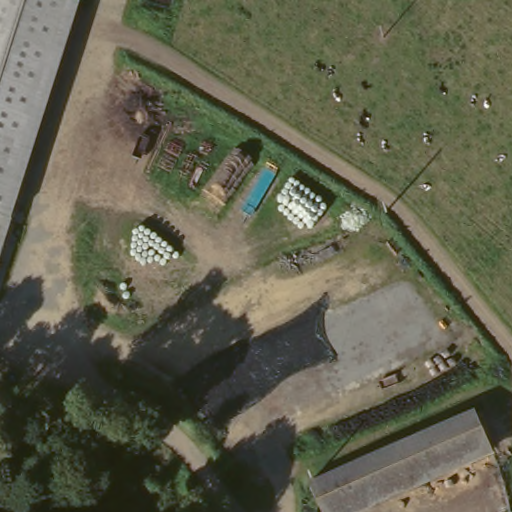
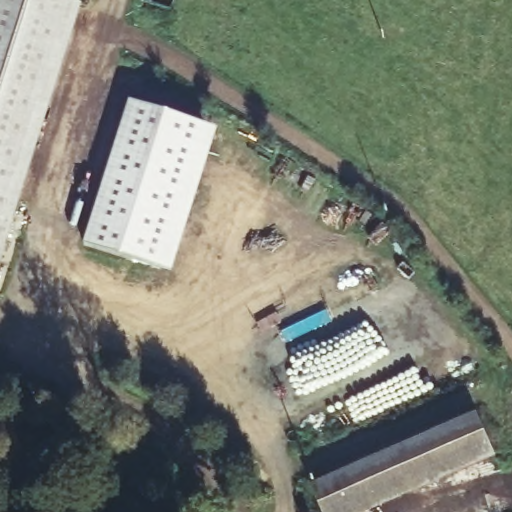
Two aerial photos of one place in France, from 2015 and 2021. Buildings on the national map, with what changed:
unchanged [(81,5),(0,269),(0,0),(64,0),(81,5)]
new [(134,114),(208,137),(163,280),(89,257),(134,114)]
unchanged [(494,456),(370,512),(321,512),(308,484),(474,411),(494,456)]

